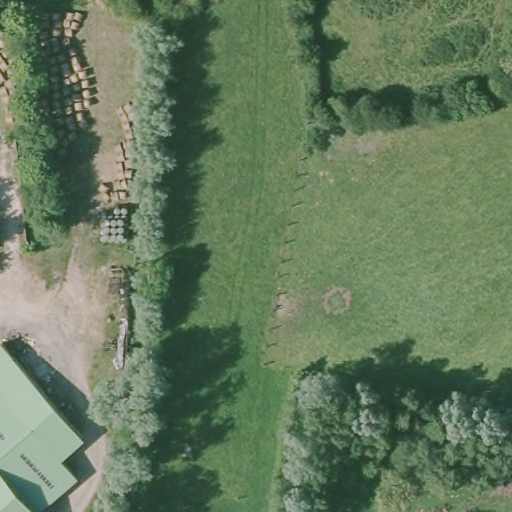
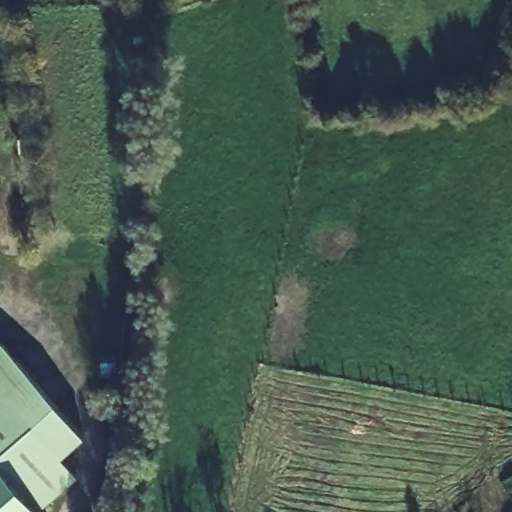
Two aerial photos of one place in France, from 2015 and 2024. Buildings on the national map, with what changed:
unchanged [(2,342),(83,435),(60,455),(76,474),(38,508),(42,512),(0,512),(0,344),(2,342)]

